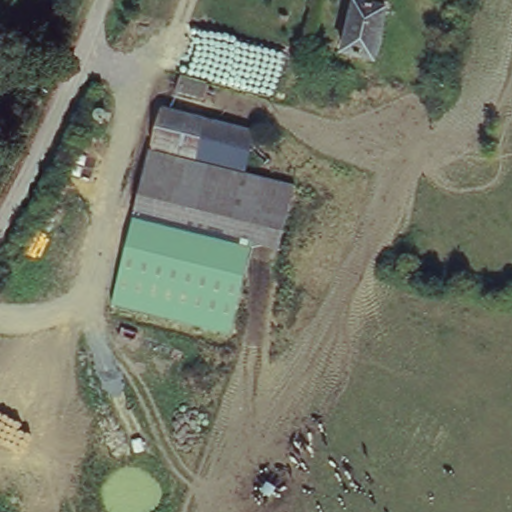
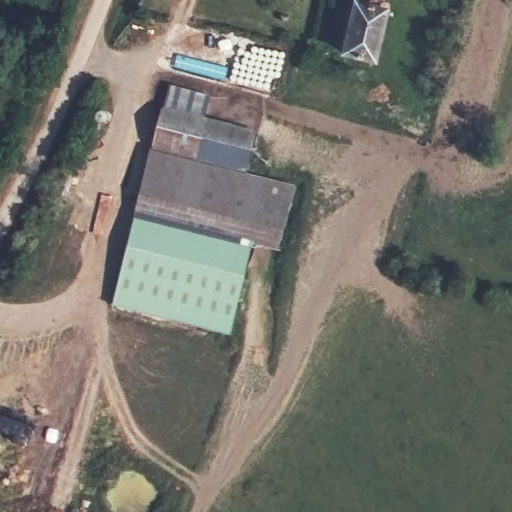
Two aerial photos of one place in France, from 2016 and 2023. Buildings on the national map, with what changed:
unchanged [(340,43),(349,0),(384,0),(372,51),(340,43)]
unchanged [(161,105),(171,107),(179,76),(209,85),(201,116),(256,131),(245,172),(296,185),(278,252),(134,214),(161,105)]
unchanged [(111,304),(134,214),(251,245),(230,334),(111,304)]

